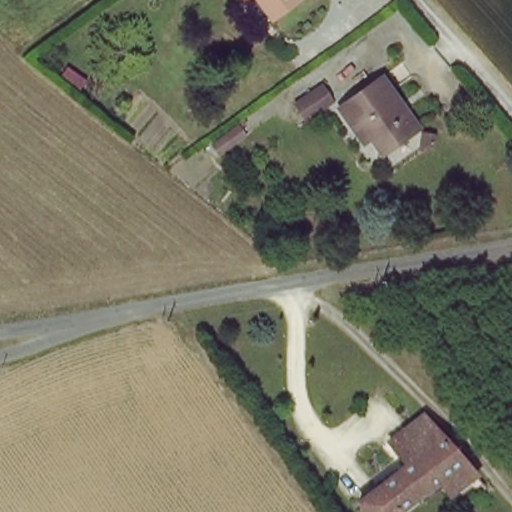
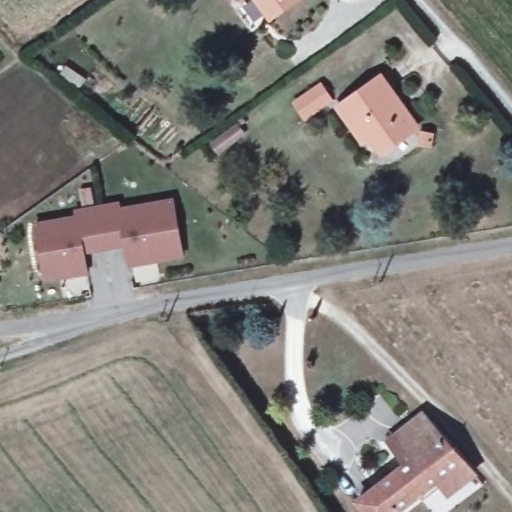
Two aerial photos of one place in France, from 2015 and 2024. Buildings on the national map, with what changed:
unchanged [(271,19),(257,0),(295,0),(271,19)]
unchanged [(353,127),(339,108),(382,77),(419,128),(383,154),(370,136),(363,141),(353,127)]
unchanged [(330,96),(306,116),(297,104),(320,84),(330,96)]
unchanged [(233,142),(219,152),(214,145),(227,134),(233,142)]
new [(184,259),(128,269),(124,248),(84,256),(88,277),(43,284),(34,223),(75,216),(74,210),(119,202),(120,207),(174,198),(184,259)]
unchanged [(383,448),(419,417),(439,438),(402,468),(383,448)]
unchanged [(402,468),(439,438),(463,464),(466,467),(474,476),(446,499),(435,486),(399,512),(357,512),(352,507),(402,468)]

